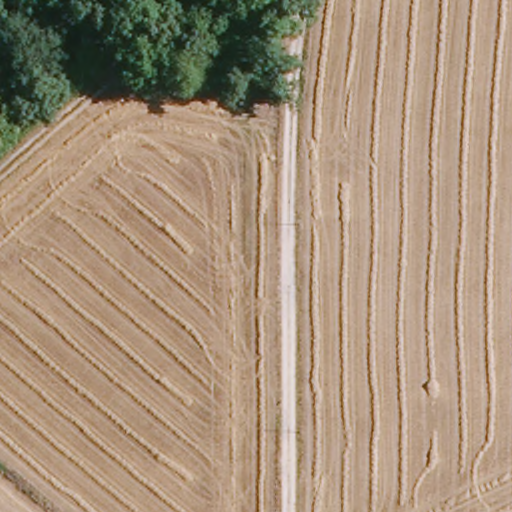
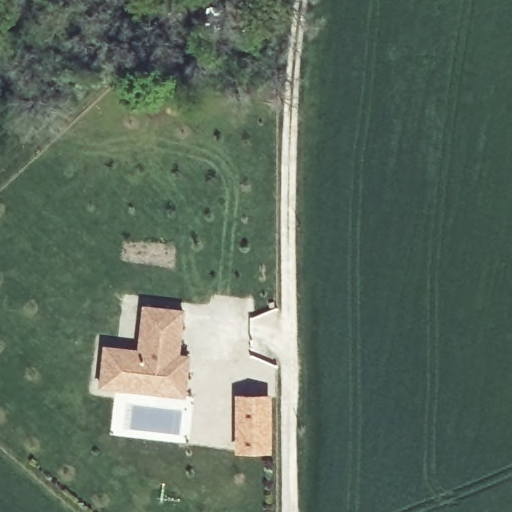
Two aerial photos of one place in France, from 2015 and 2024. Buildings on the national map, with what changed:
new [(142,305),(185,309),(180,354),(189,355),(186,396),(98,387),(104,345),(136,348),(142,305)]
new [(234,391),(272,392),(272,452),(233,452),(234,391)]

